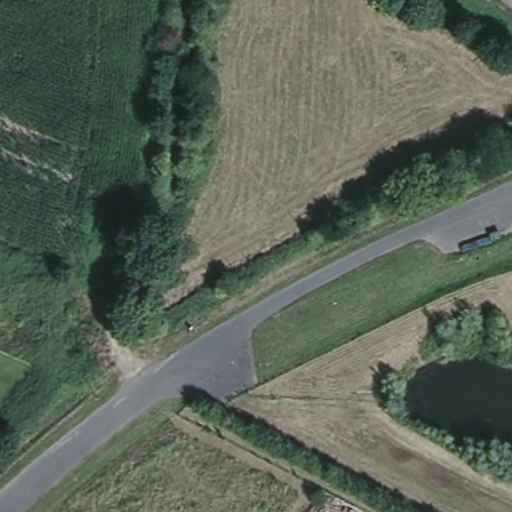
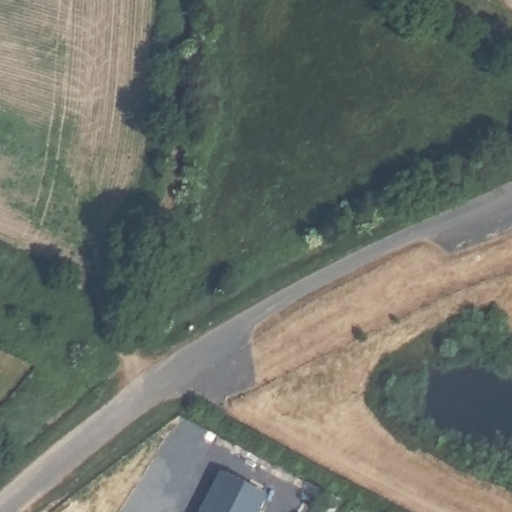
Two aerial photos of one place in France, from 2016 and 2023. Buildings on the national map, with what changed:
new [(262,496),(255,512),(198,512),(218,473),(262,496)]

